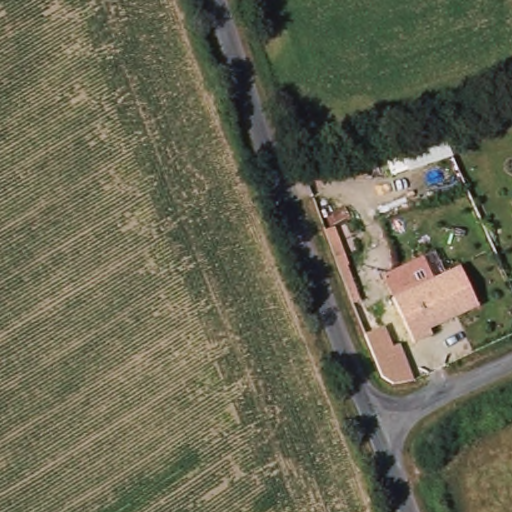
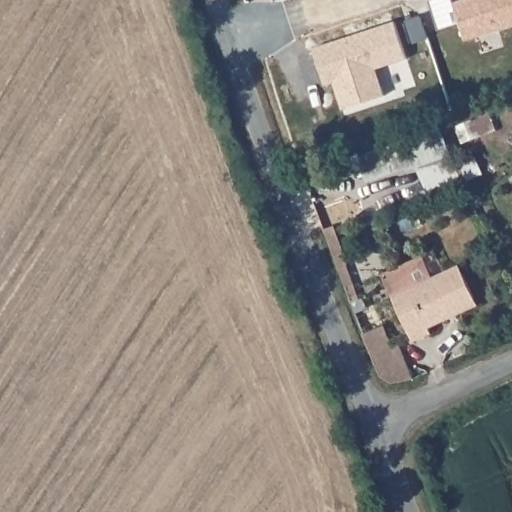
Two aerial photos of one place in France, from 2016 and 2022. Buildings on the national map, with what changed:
new [(512,0),(512,26),(467,43),(455,1),(458,0),(512,0)]
new [(329,80),(317,44),(397,16),(410,52),(379,63),(388,89),(347,104),(340,83),(338,77),(329,80)]
unchanged [(392,175),(384,154),(443,134),(452,155),(392,175)]
unchanged [(383,273),(436,250),(443,274),(394,297),(383,273)]
unchanged [(479,305),(430,328),(432,334),(414,342),(394,297),(461,267),(479,305)]
unchanged [(392,348),(400,345),(415,381),(395,384),(381,373),(366,332),(386,324),(392,348)]

